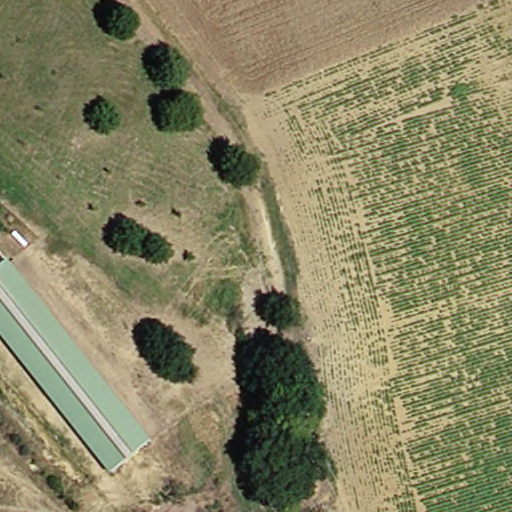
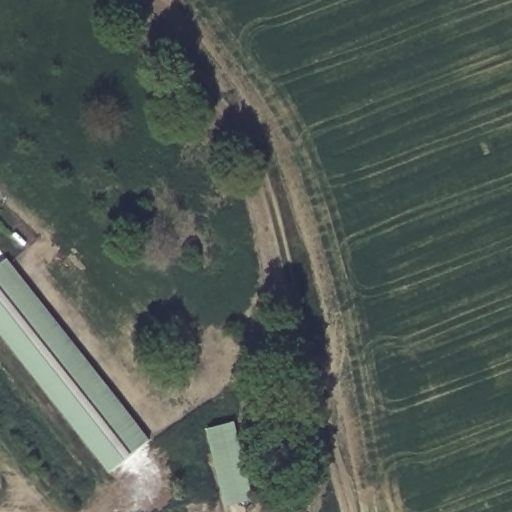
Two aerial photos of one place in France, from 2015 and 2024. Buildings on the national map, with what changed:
unchanged [(118,468),(0,315),(0,271),(15,260),(154,442),(118,468)]
new [(258,500),(228,507),(209,430),(239,422),(258,500)]

